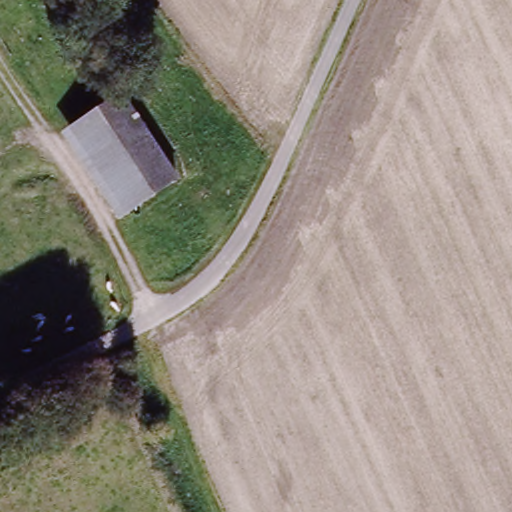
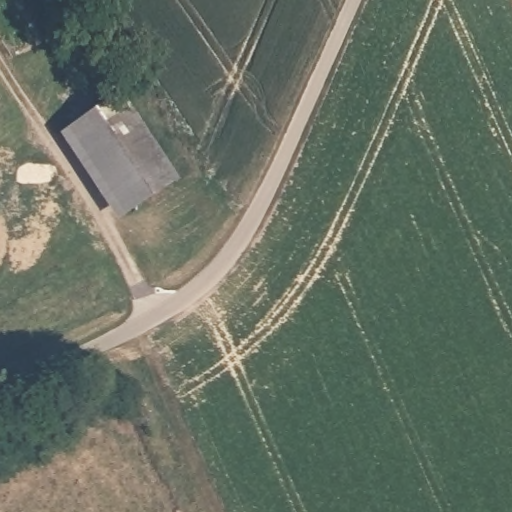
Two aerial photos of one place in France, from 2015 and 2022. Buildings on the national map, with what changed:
unchanged [(182,181),(124,219),(69,136),(126,99),(182,181)]

